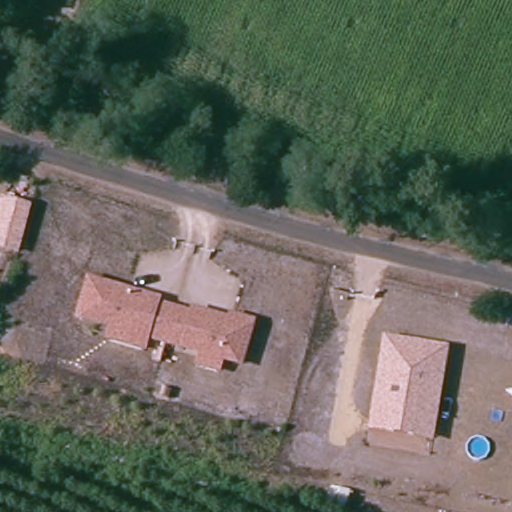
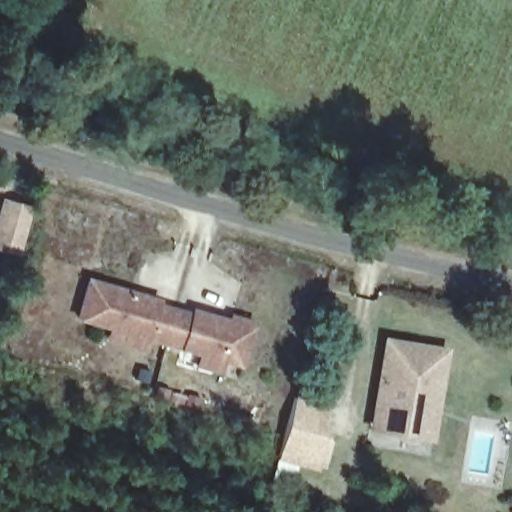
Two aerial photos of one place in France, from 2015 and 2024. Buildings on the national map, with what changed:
unchanged [(19,257),(0,251),(0,202),(1,199),(33,208),(19,257)]
unchanged [(162,299),(161,303),(190,312),(191,308),(227,318),(228,312),(255,320),(243,368),(223,364),(220,374),(194,366),(197,357),(149,341),(146,350),(102,338),(106,329),(75,319),(88,277),(162,299)]
unchanged [(384,336),(449,347),(434,443),(368,433),(384,336)]
new [(322,433),(330,435),(319,469),(277,459),(295,392),(330,402),(322,433)]

